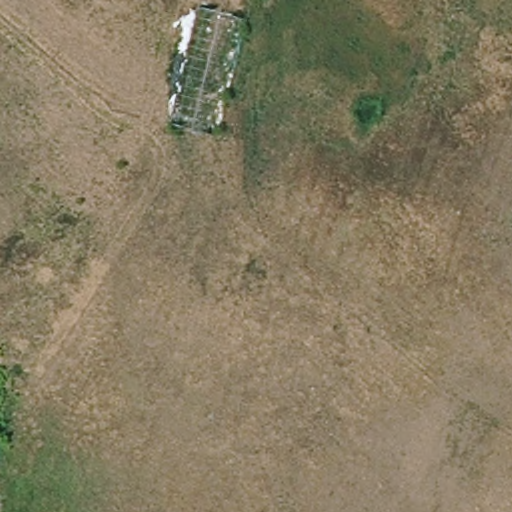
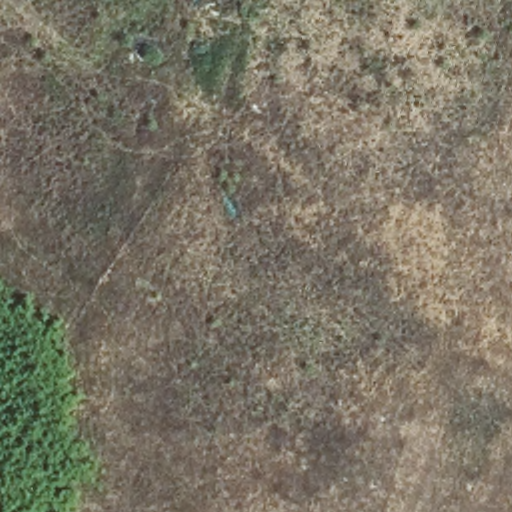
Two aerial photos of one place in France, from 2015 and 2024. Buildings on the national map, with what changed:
demolished [(165,123),(196,7),(238,18),(210,134),(165,123)]

